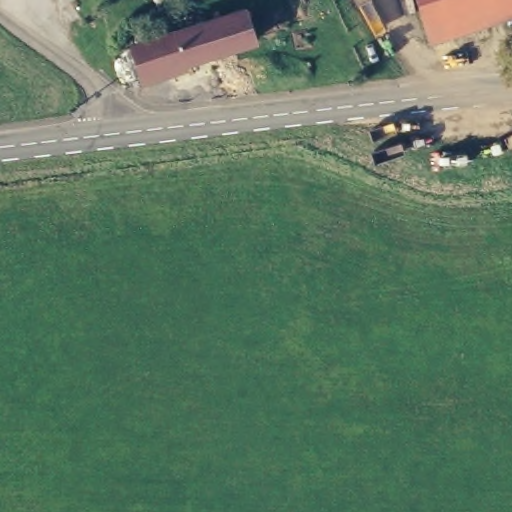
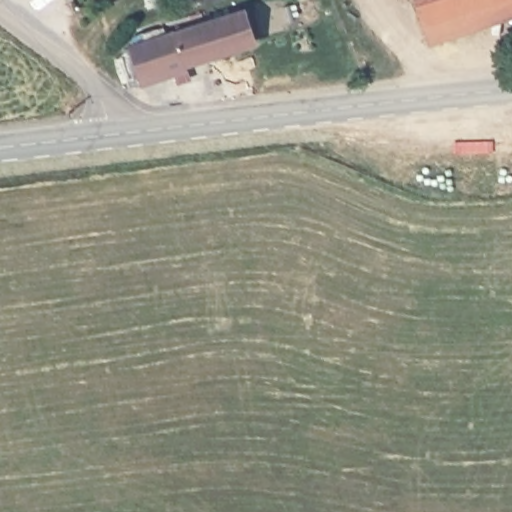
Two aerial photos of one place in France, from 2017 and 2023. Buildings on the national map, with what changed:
unchanged [(432,44),(418,0),(512,0),(512,19),(432,44)]
unchanged [(246,8),(254,35),(209,49),(207,53),(168,64),(170,71),(143,79),(133,43),(246,8)]

